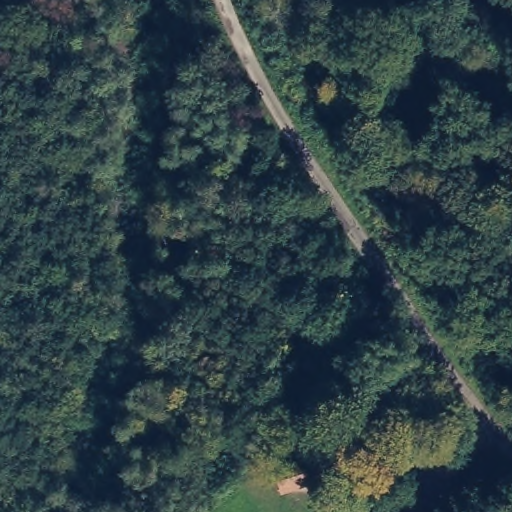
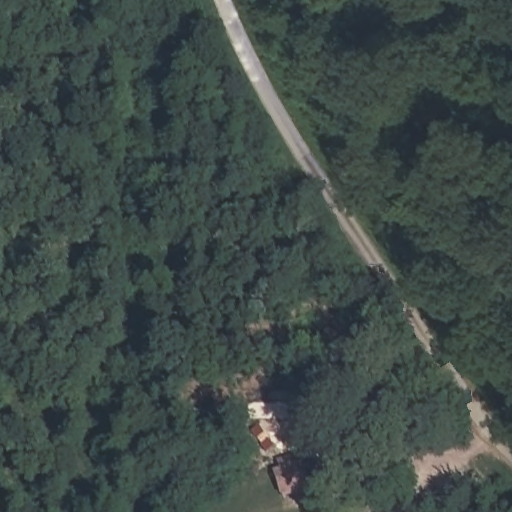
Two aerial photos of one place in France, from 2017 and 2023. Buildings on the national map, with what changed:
unchanged [(318,461),(328,488),(277,505),(270,475),(318,461)]

